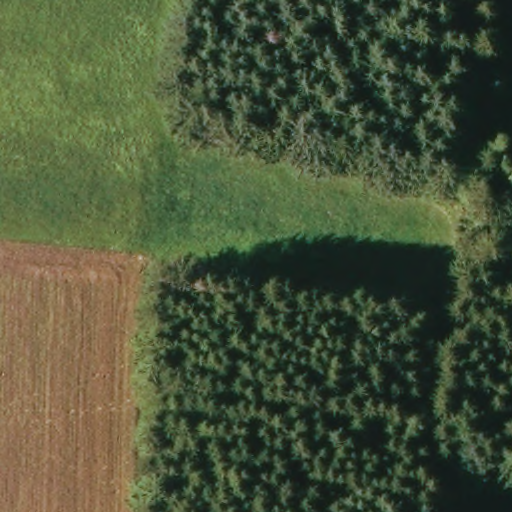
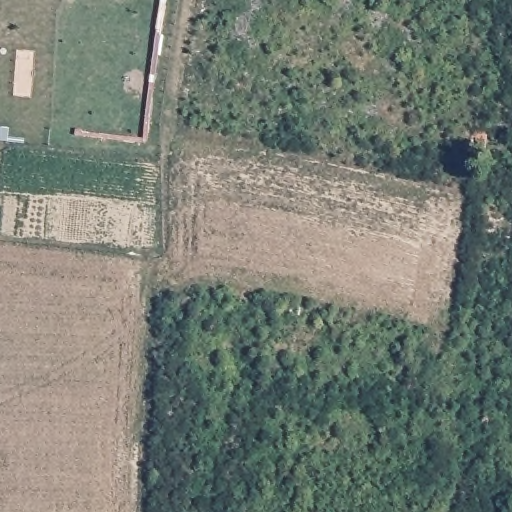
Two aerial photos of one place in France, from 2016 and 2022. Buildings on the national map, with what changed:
unchanged [(500,157),(497,178),(480,176),(483,154),(500,157)]

